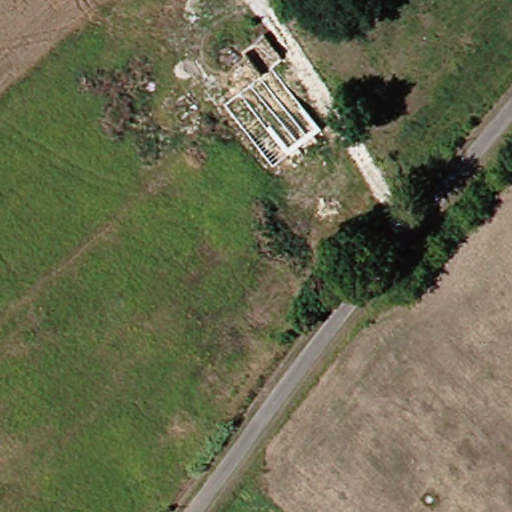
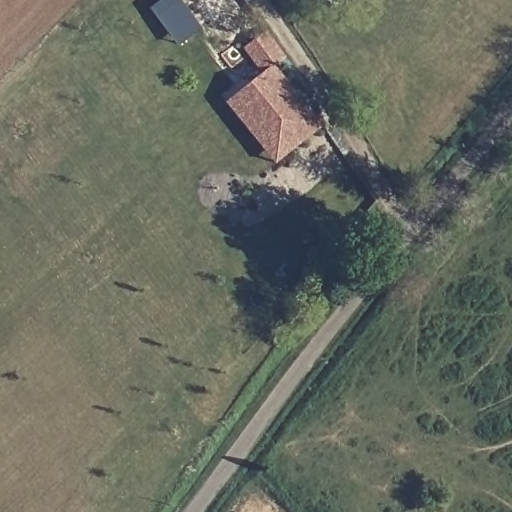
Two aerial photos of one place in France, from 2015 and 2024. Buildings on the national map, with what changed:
new [(151,10),(164,0),(180,0),(202,29),(178,46),(151,10)]
new [(285,60),(274,67),(321,127),(273,164),(227,104),(262,75),(244,50),(265,34),(285,60)]
demolished [(263,60),(239,76),(222,51),(244,35),(263,60)]

